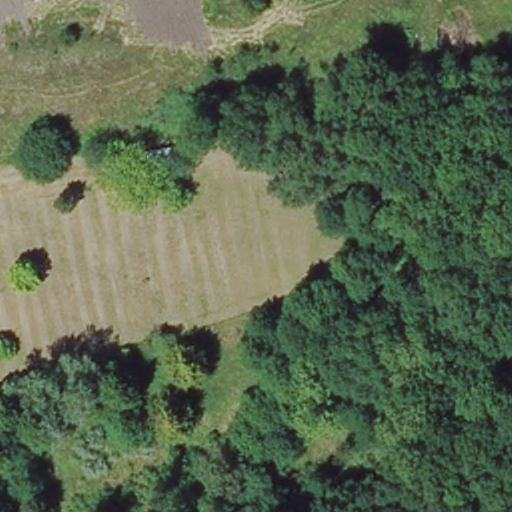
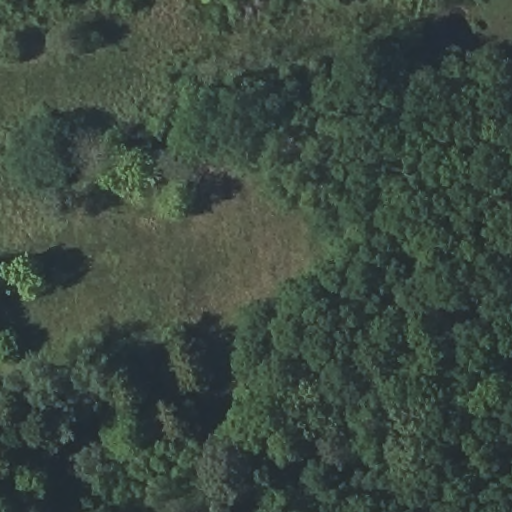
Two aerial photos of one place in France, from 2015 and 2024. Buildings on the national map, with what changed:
[]

